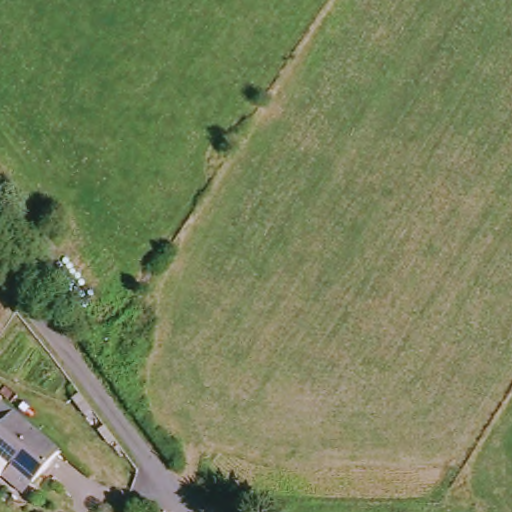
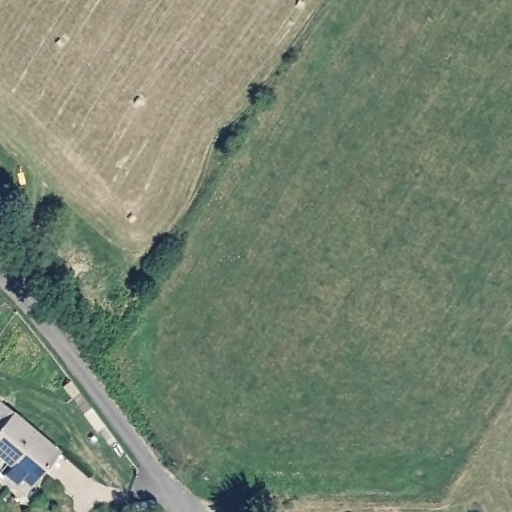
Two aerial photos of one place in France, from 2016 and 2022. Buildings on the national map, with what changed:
unchanged [(0,401),(20,417),(0,439),(0,401)]
unchanged [(41,484),(0,451),(0,439),(20,417),(66,453),(41,484)]

